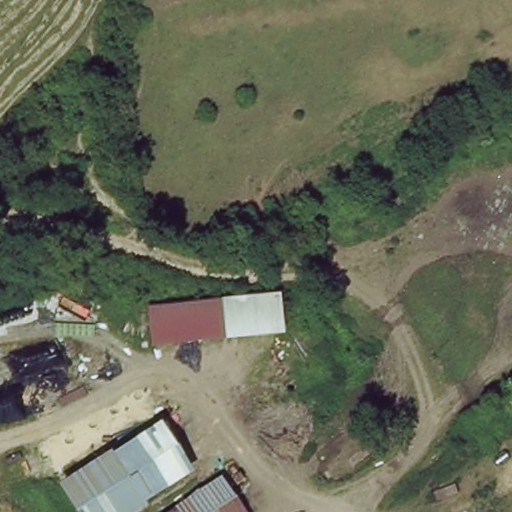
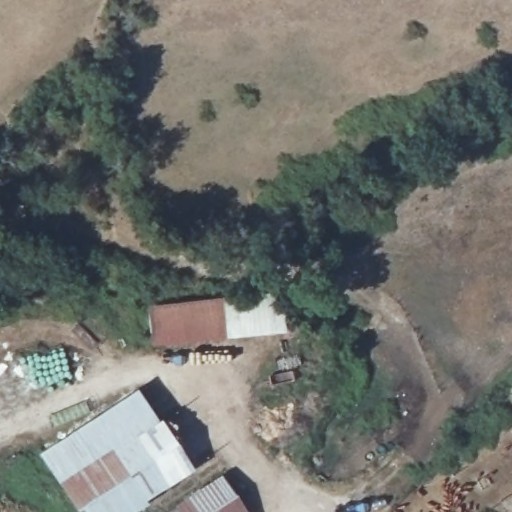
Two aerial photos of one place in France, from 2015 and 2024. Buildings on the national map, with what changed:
unchanged [(154,349),(149,304),(287,292),(291,336),(154,349)]
new [(133,430),(53,482),(37,454),(136,389),(159,419),(133,430)]
unchanged [(165,417),(199,474),(171,489),(133,430),(165,417)]
unchanged [(133,430),(171,489),(135,512),(75,512),(53,482),(133,430)]
unchanged [(223,472),(248,512),(163,512),(223,472)]

